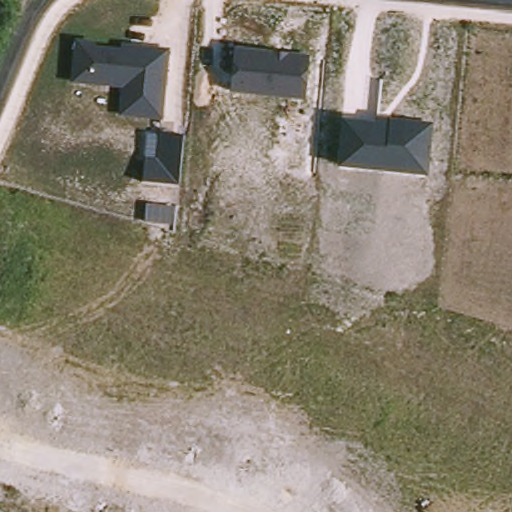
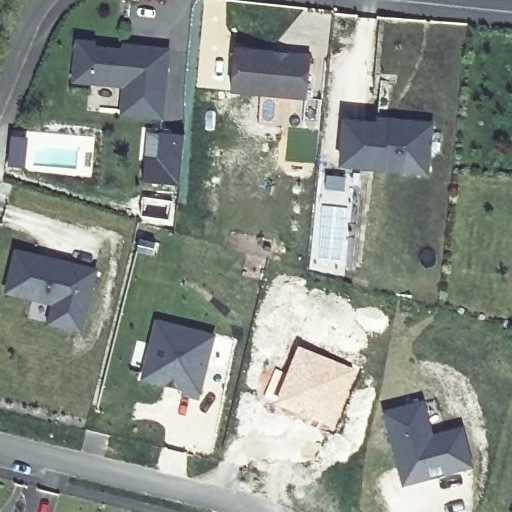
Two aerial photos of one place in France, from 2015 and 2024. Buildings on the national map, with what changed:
unchanged [(170,51),(164,120),(118,115),(121,87),(71,81),(74,41),(170,51)]
unchanged [(311,56),(307,100),(232,91),(236,49),(311,56)]
unchanged [(433,125),(428,175),(340,167),(346,116),(433,125)]
unchanged [(185,137),(179,185),(143,181),(148,133),(185,137)]
new [(14,250),(97,270),(83,333),(46,326),(51,305),(5,295),(14,250)]
new [(141,376),(154,320),(211,335),(195,395),(179,391),(180,386),(174,385),(164,382),(141,376)]
new [(274,368),(285,372),(297,345),(357,370),(332,430),(261,397),(274,368)]
new [(382,411),(419,401),(434,397),(443,431),(458,427),(468,464),(401,482),(393,451),(391,440),(382,411)]

